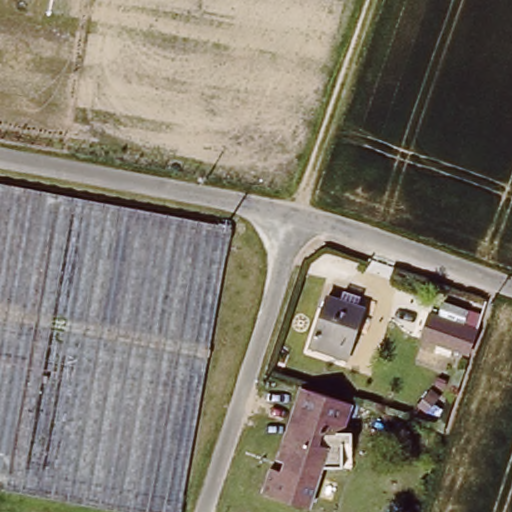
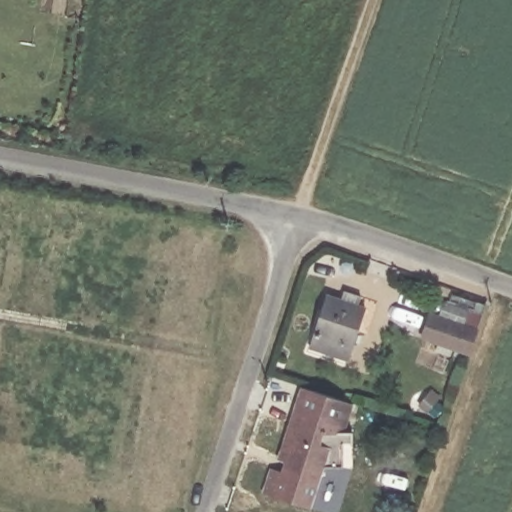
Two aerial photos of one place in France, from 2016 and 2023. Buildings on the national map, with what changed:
demolished [(230,232),(174,512),(0,512),(0,188),(230,232)]
unchanged [(351,354),(314,343),(330,293),(340,296),(367,305),(360,327),(351,354)]
unchanged [(432,300),(484,318),(472,354),(419,339),(432,300)]
unchanged [(427,402),(417,398),(422,387),(432,391),(427,402)]
unchanged [(308,512),(262,497),(270,473),(280,476),(283,467),(277,464),(292,416),(301,389),(345,404),(337,428),(334,434),(342,437),(339,466),(322,469),(322,471),(316,487),(308,512)]

